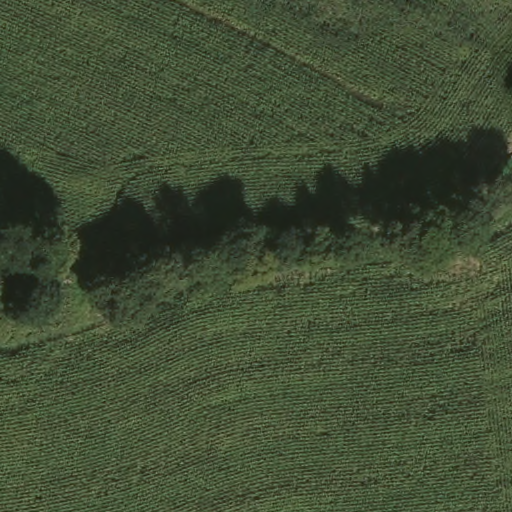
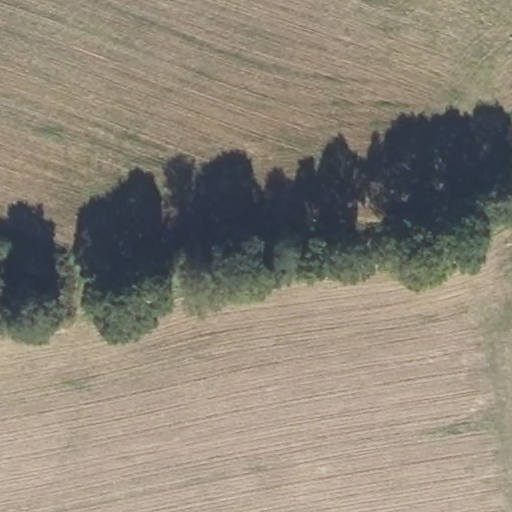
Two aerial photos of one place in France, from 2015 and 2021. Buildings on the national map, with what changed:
[]

